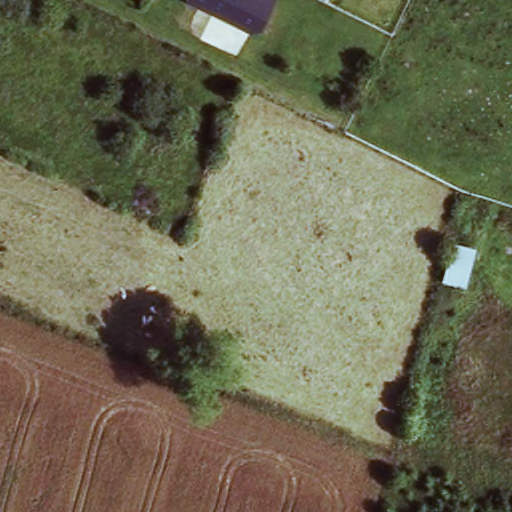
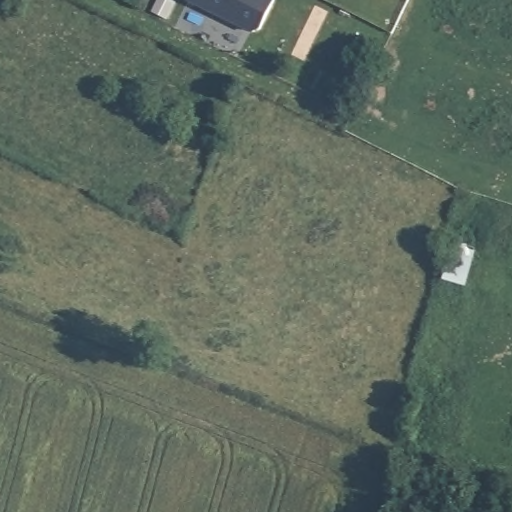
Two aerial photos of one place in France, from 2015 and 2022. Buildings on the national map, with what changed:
unchanged [(186,4),(188,0),(273,0),(254,39),(186,4)]
unchanged [(452,241),(475,248),(467,286),(442,279),(452,241)]

